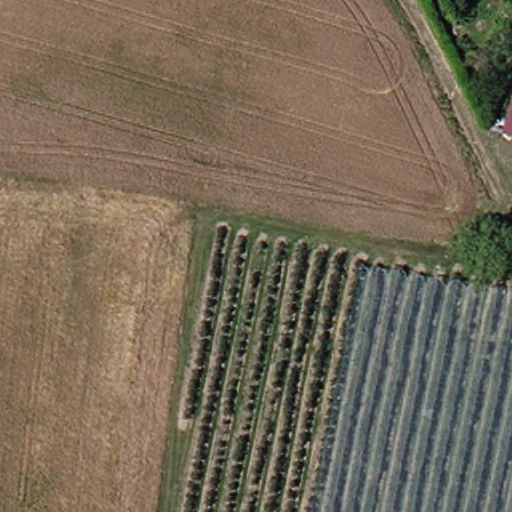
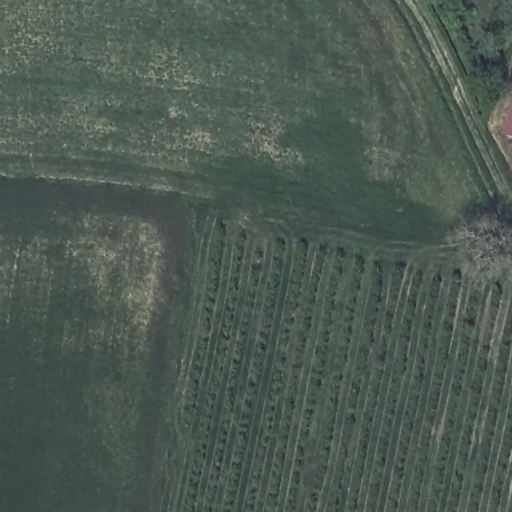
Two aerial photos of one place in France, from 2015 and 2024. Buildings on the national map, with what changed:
unchanged [(512,97),(512,136),(501,132),(512,97)]

